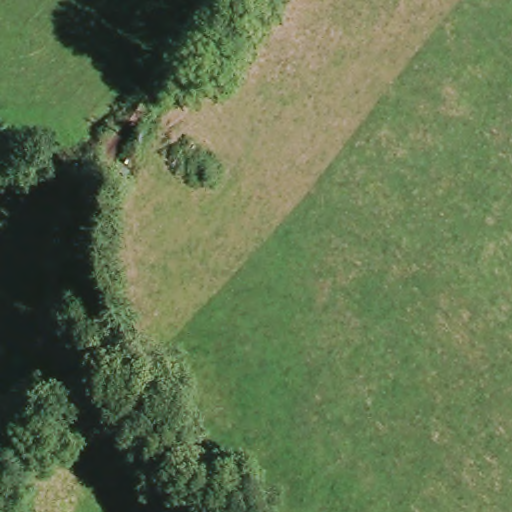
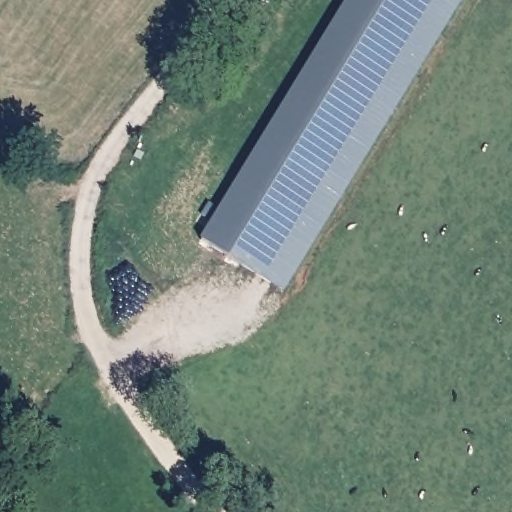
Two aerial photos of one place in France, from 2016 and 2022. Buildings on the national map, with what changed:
new [(346,0),(461,0),(283,289),(200,239),(346,0)]

